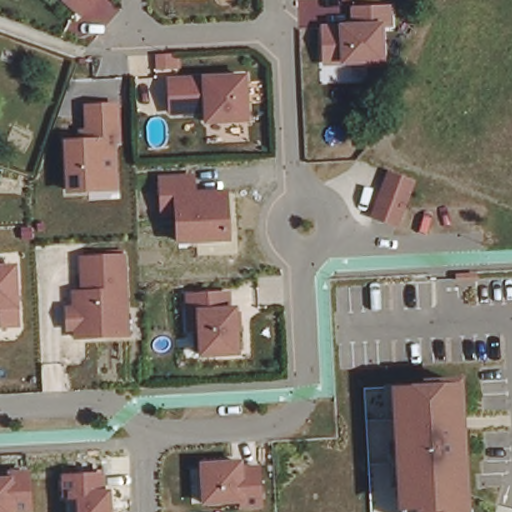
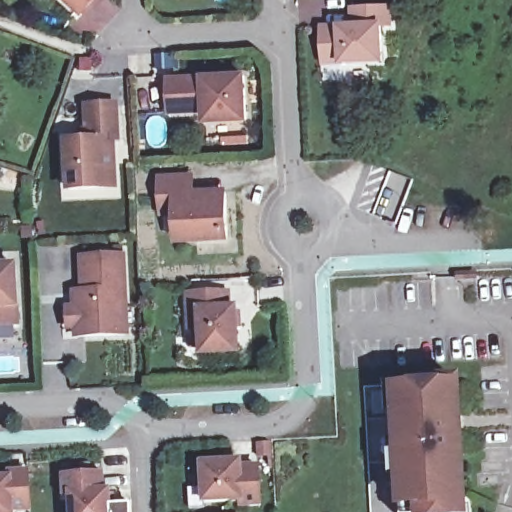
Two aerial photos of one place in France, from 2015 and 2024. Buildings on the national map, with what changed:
unchanged [(82,17),(64,0),(95,0),(82,17)]
unchanged [(320,24),(340,22),(352,23),(352,5),(393,5),(395,27),(387,27),(388,60),(340,64),(322,65),(320,24)]
unchanged [(202,75),(245,72),(248,120),(205,124),(205,109),(170,112),(168,77),(202,75)]
unchanged [(64,144),(75,142),(75,130),(85,130),(85,106),(120,104),(122,145),(115,144),(118,190),(66,195),(64,144)]
unchanged [(415,180),(397,229),(373,217),(389,172),(415,180)]
unchanged [(174,205),(161,206),(159,175),(195,175),(197,191),(230,190),(232,242),(175,245),(174,205)]
unchanged [(125,254),(128,335),(75,340),(76,332),(67,332),(67,308),(71,308),(70,291),(80,290),(79,257),(125,254)]
unchanged [(18,327),(0,327),(0,267),(15,266),(18,327)]
unchanged [(196,313),(187,313),(187,294),(232,294),(233,306),(242,306),(242,354),(198,357),(196,313)]
unchanged [(422,387),(422,381),(464,378),(471,512),(400,512),(389,390),(409,387),(422,387)]
unchanged [(245,458),(245,464),(260,463),(263,510),(240,511),(240,506),(204,507),(199,460),(245,458)]
unchanged [(8,471),(31,470),(33,512),(0,512),(0,478),(7,478),(8,471)]
unchanged [(75,495),(73,472),(107,471),(106,491),(114,490),(115,512),(70,512),(68,495),(75,495)]

